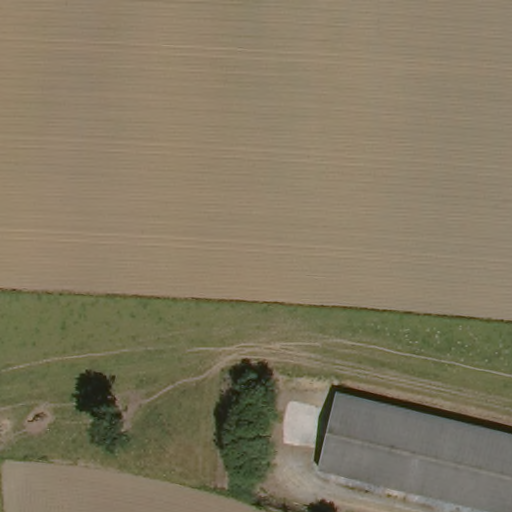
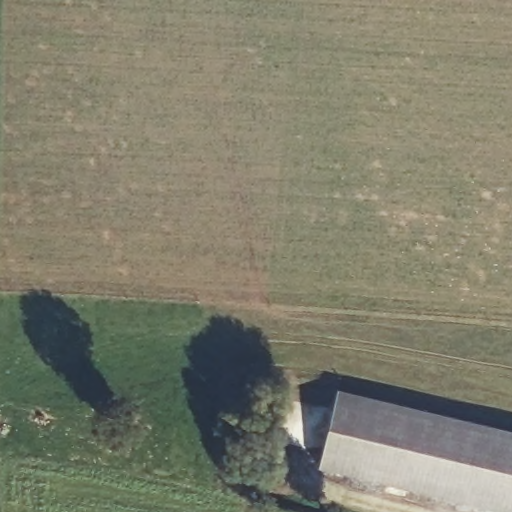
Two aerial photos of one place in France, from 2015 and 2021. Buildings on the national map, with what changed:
unchanged [(495,512),(317,470),(334,392),(512,434),(512,512),(495,512)]

